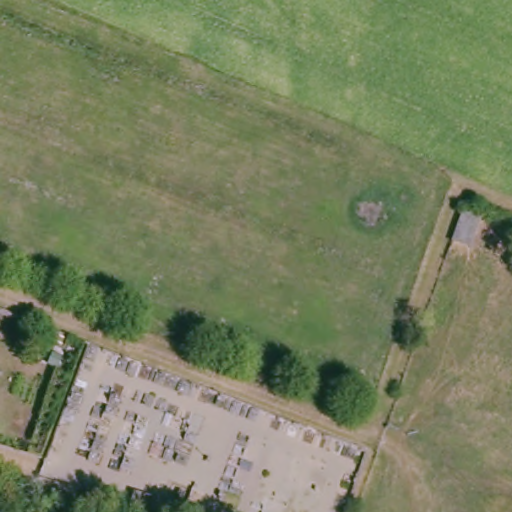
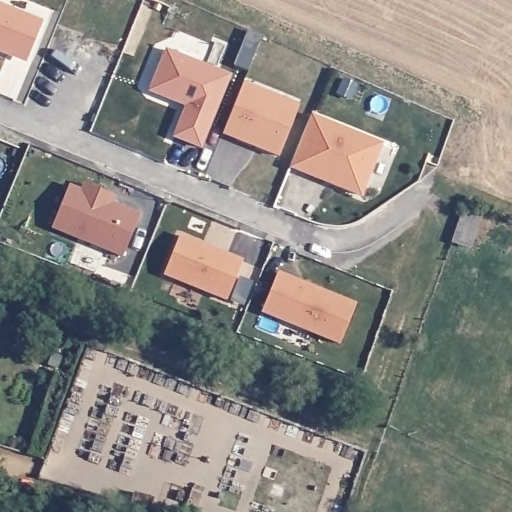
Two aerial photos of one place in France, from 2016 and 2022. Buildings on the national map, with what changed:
new [(0,46),(0,3),(52,24),(37,61),(0,46)]
new [(210,151),(183,140),(195,109),(158,94),(175,53),(238,79),(210,151)]
new [(287,159),(232,136),(250,91),(271,100),(273,95),(290,102),(288,106),(298,111),(303,121),(287,159)]
new [(369,198),(340,186),(342,183),(335,180),(333,183),(299,169),(320,119),(390,147),(369,198)]
new [(132,260),(60,231),(77,190),(90,195),(93,188),(116,197),(113,204),(149,219),(132,260)]
new [(121,207),(113,204),(116,197),(124,200),(121,207)]
unchanged [(446,245),(462,208),(482,218),(468,254),(446,245)]
new [(235,302),(172,277),(188,238),(251,264),(235,302)]
new [(364,307),(348,346),(270,314),(286,276),(323,291),(325,295),(330,297),(332,294),(364,307)]

